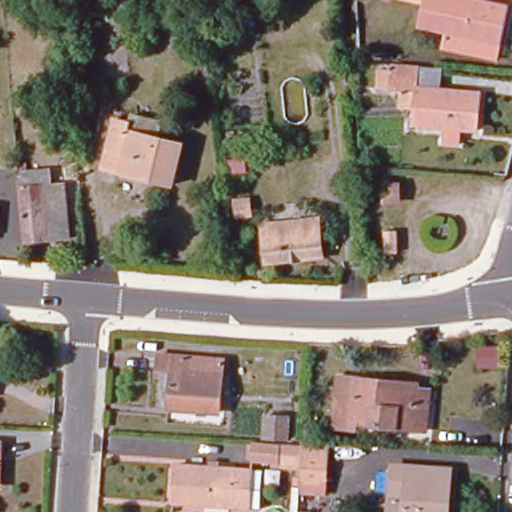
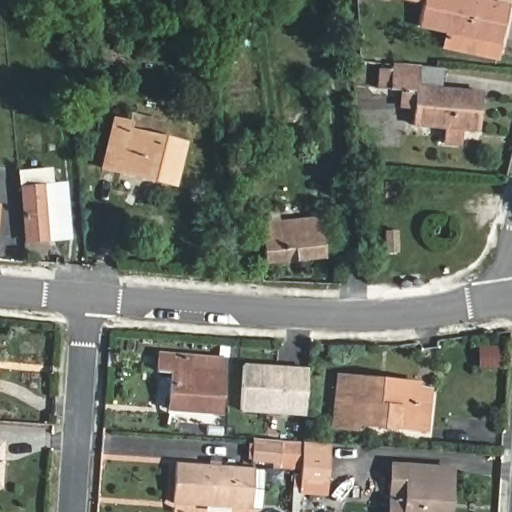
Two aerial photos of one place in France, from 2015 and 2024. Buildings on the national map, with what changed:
unchanged [(2,0),(19,0),(3,2),(2,0)]
unchanged [(116,14),(115,0),(131,0),(133,13),(116,14)]
unchanged [(420,0),(420,2),(409,0),(420,0)]
unchanged [(442,38),(414,30),(420,2),(420,0),(480,0),(508,7),(498,63),(440,53),(442,38)]
unchanged [(397,108),(398,89),(376,89),(377,68),(391,68),(392,61),(421,67),(418,85),(412,85),(411,107),(397,108)]
unchanged [(442,134),(409,129),(411,107),(412,85),(418,85),(421,67),(443,70),(439,89),(480,95),(476,134),(460,133),(457,149),(440,149),(442,134)]
unchanged [(132,126),(131,135),(184,147),(174,190),(105,173),(117,124),(132,126)]
unchanged [(47,175),(49,190),(61,189),(66,241),(24,245),(17,178),(47,175)]
unchanged [(383,206),(383,180),(401,180),(401,206),(383,206)]
unchanged [(315,224),(319,262),(263,268),(260,235),(278,234),(277,227),(315,224)]
unchanged [(393,262),(393,278),(374,279),(374,263),(393,262)]
unchanged [(225,359),(221,413),(203,412),(203,406),(171,404),(175,373),(160,372),(161,354),(225,359)]
new [(239,367),(302,370),(300,416),(236,412),(239,367)]
unchanged [(376,381),(377,384),(419,389),(417,406),(431,406),(429,426),(354,419),(354,429),(336,427),(341,381),(360,383),(360,379),(376,381)]
unchanged [(294,444),(293,469),(276,468),(276,461),(250,460),(250,443),(294,444)]
unchanged [(300,443),(324,444),(322,483),(322,494),(297,493),(297,481),(300,443)]
unchanged [(250,469),(247,509),(170,503),(173,464),(250,469)]
unchanged [(450,509),(445,509),(445,512),(391,512),(392,507),(395,472),(409,472),(453,476),(450,509)]

